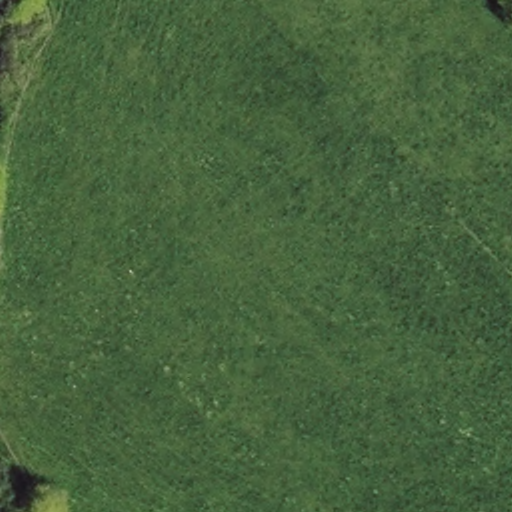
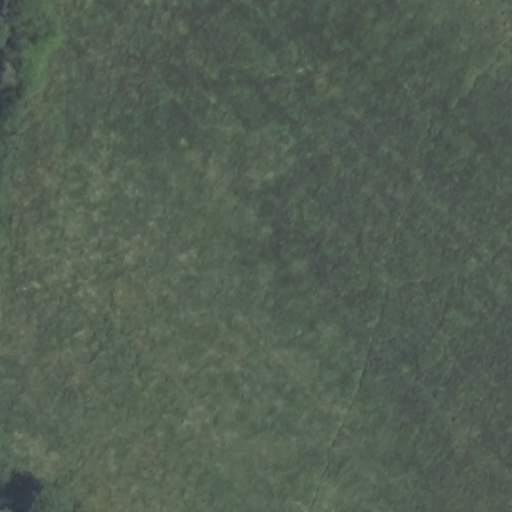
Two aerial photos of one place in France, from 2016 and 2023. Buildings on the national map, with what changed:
[]

